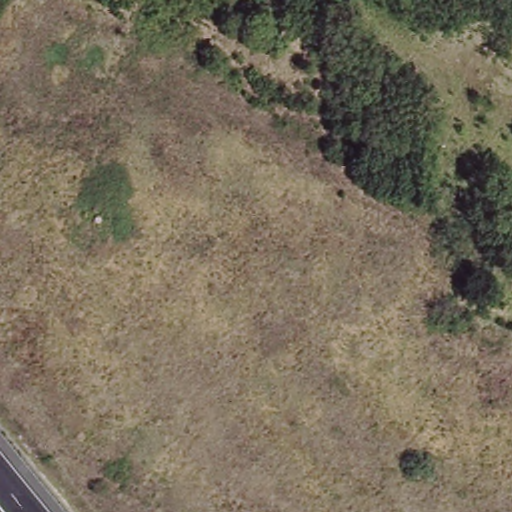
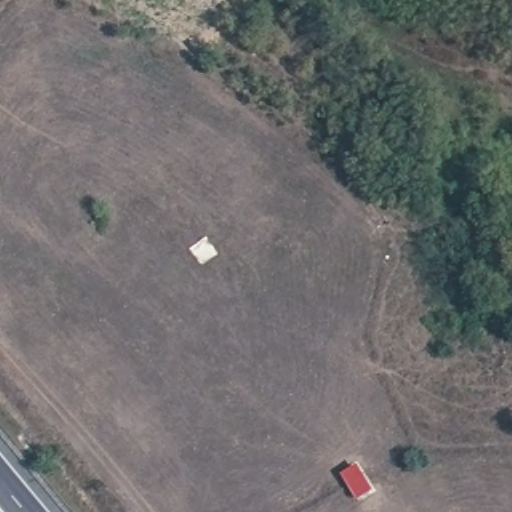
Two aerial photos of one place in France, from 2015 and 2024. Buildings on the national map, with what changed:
[]

